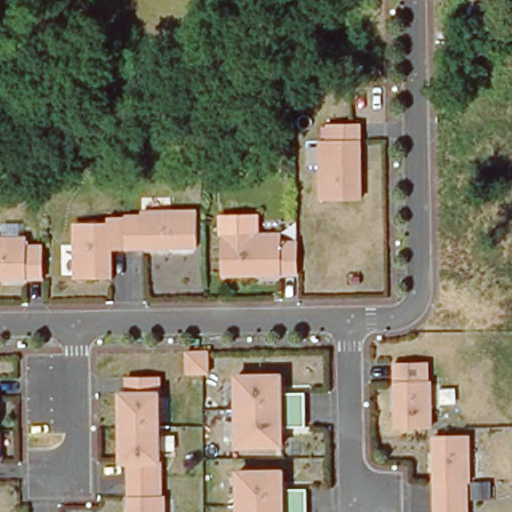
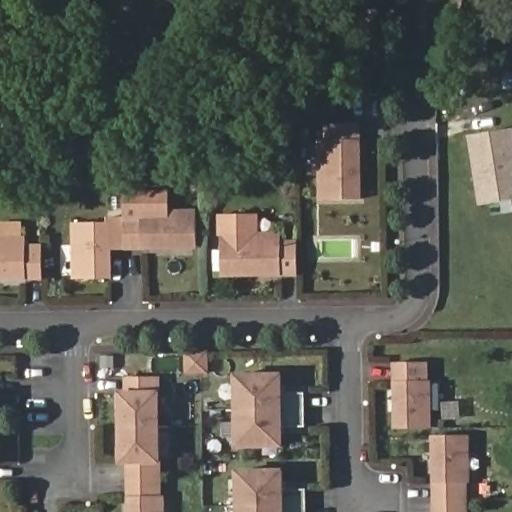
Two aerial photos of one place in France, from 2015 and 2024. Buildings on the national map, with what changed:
new [(466,14),(491,15),(490,52),(464,51),(466,14)]
unchanged [(361,123),(360,198),(317,196),(317,139),(325,139),(325,122),(361,123)]
new [(468,135),(512,129),(512,200),(479,205),(468,135)]
unchanged [(196,247),(111,248),(111,275),(73,276),(71,221),(108,221),(108,215),(124,215),(124,212),(140,213),(139,209),(194,209),(196,247)]
unchanged [(280,239),(297,239),(297,274),(221,275),(220,232),(279,232),(280,239)]
unchanged [(25,245),(41,245),(41,277),(0,277),(0,237),(25,236),(25,245)]
unchanged [(428,380),(430,380),(431,426),(393,427),(392,361),(428,361),(428,380)]
unchanged [(282,372),(282,393),(302,393),(303,425),(283,425),(283,445),(235,446),(235,372),(282,372)]
unchanged [(158,392),(159,461),(161,461),(161,496),(164,496),(164,512),(127,512),(127,464),(118,464),(118,388),(123,388),(123,376),(159,376),(160,391),(158,392)]
unchanged [(431,512),(430,434),(469,433),(469,512),(431,512)]
unchanged [(284,489),(305,488),(305,512),(236,512),(235,469),(283,467),(284,489)]

